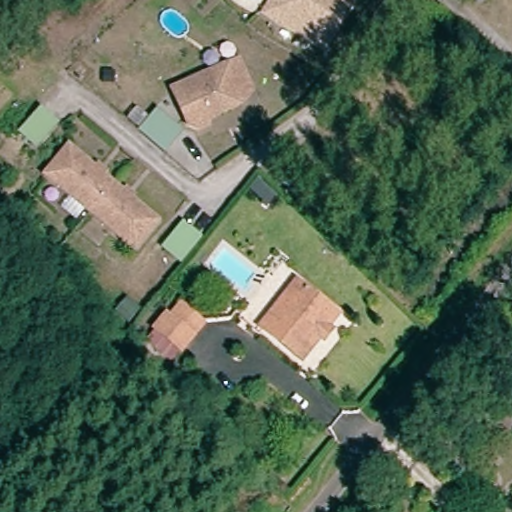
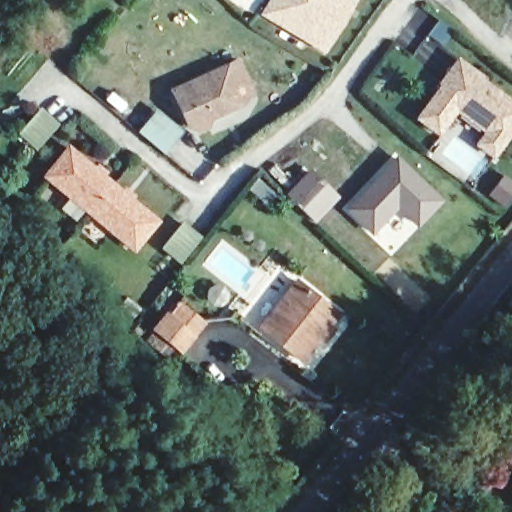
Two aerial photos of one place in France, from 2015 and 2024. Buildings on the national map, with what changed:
unchanged [(321,49),(264,16),(274,0),(349,0),(350,0),(321,49)]
new [(436,92),(434,90),(458,57),(485,75),(483,78),(512,100),(512,136),(495,159),(475,145),(485,132),(458,114),(441,135),(414,119),(436,92)]
unchanged [(239,64),(245,78),(251,94),(241,107),(209,120),(207,127),(196,131),(189,129),(173,91),(239,64)]
unchanged [(154,222),(129,250),(44,173),(67,145),(154,222)]
new [(445,199),(419,229),(398,209),(372,235),(345,209),(396,155),(445,199)]
unchanged [(325,350),(313,339),(307,344),(315,352),(300,369),(260,334),(299,287),(339,319),(327,334),(333,340),(325,350)]
unchanged [(182,297),(207,319),(181,349),(173,359),(148,337),(157,326),(182,297)]

